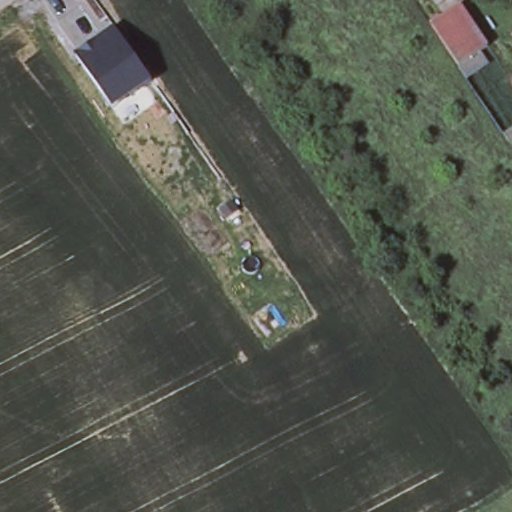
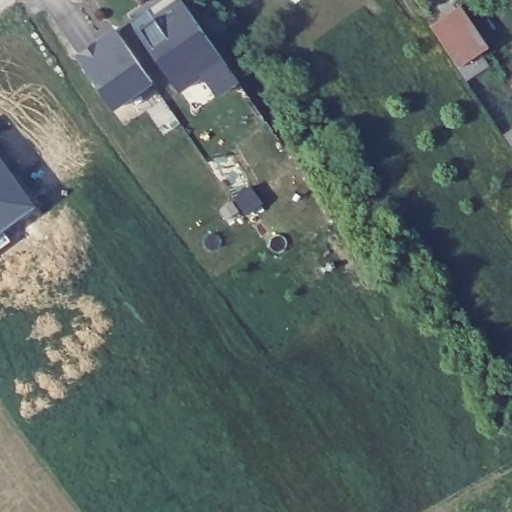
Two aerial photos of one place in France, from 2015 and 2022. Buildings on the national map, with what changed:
new [(136,27),(156,12),(151,6),(159,0),(184,0),(223,59),(238,82),(216,97),(201,77),(180,91),(136,27)]
unchanged [(462,7),(492,47),(465,68),(434,28),(462,7)]
unchanged [(153,85),(114,112),(76,57),(118,28),(153,85)]
new [(35,209),(0,233),(0,159),(35,209)]
new [(246,184),(259,201),(244,211),(233,194),(246,184)]

